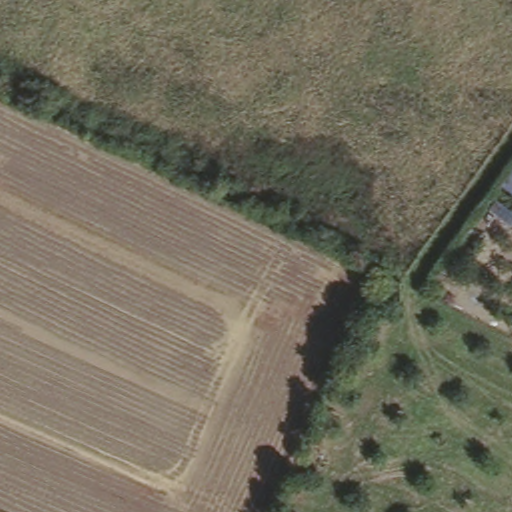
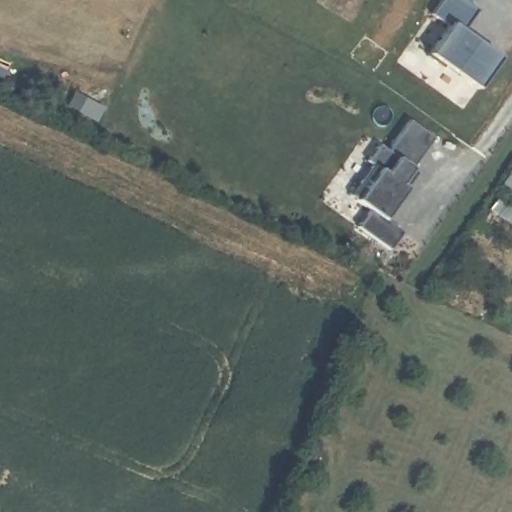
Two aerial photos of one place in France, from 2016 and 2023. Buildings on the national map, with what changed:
new [(465,36),(500,61),(479,94),(430,60),(450,28),(432,17),(443,0),(463,0),(480,10),(465,36)]
new [(433,142),(412,174),(415,176),(405,191),(408,193),(388,225),(402,235),(390,253),(360,232),(371,215),(360,206),(384,173),(389,176),(398,161),(388,152),(408,122),(433,142)]

